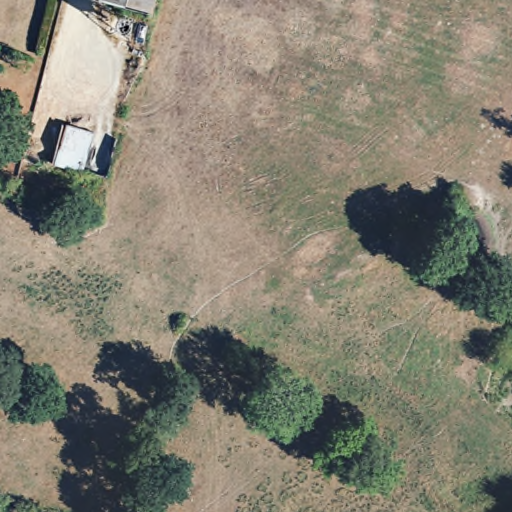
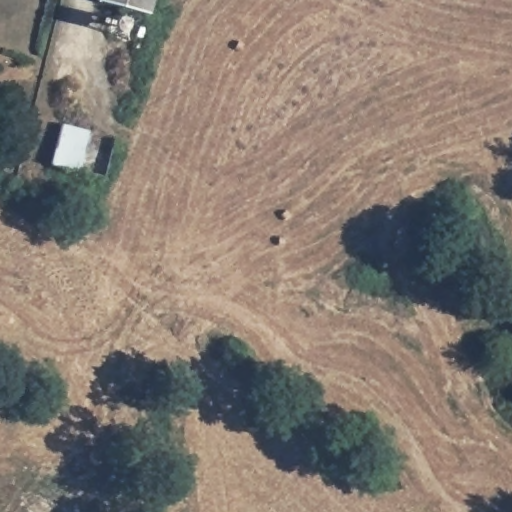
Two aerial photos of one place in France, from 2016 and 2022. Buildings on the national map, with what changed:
unchanged [(108,2),(103,0),(151,0),(150,12),(146,11),(108,2)]
unchanged [(105,185),(46,172),(57,116),(115,133),(105,185)]

